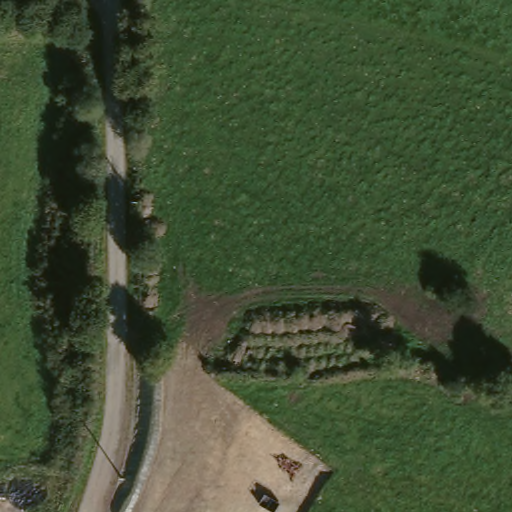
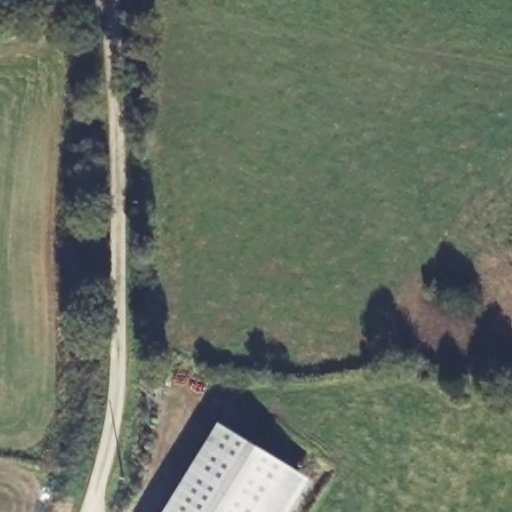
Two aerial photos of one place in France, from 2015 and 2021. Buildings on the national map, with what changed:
new [(210,419),(317,482),(300,512),(155,512),(210,419)]

